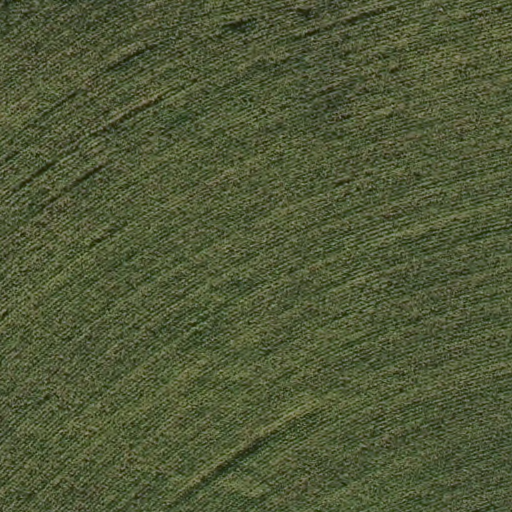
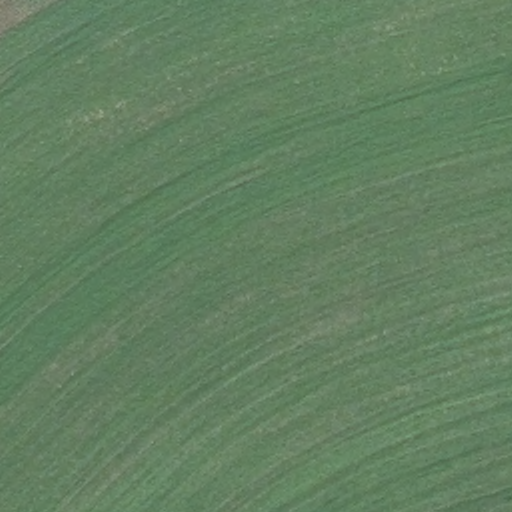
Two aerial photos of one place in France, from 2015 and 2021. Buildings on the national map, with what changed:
[]

